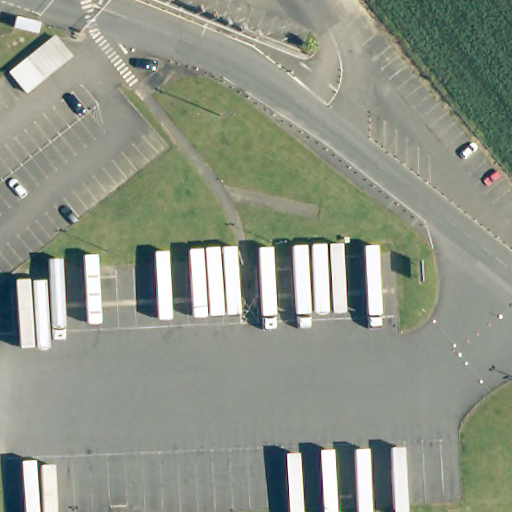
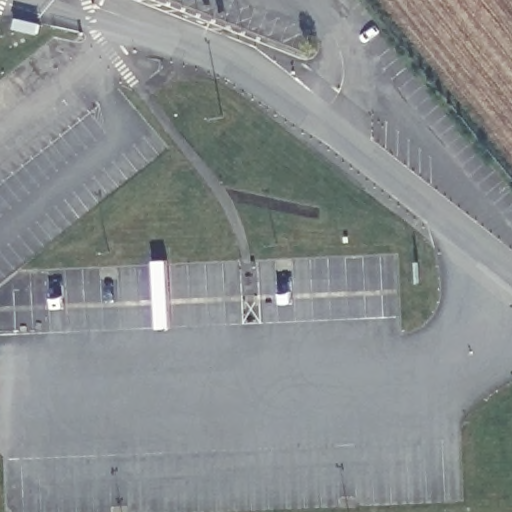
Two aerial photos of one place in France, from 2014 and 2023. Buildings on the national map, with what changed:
unchanged [(124,54),(112,63),(101,49),(112,40),(124,54)]

